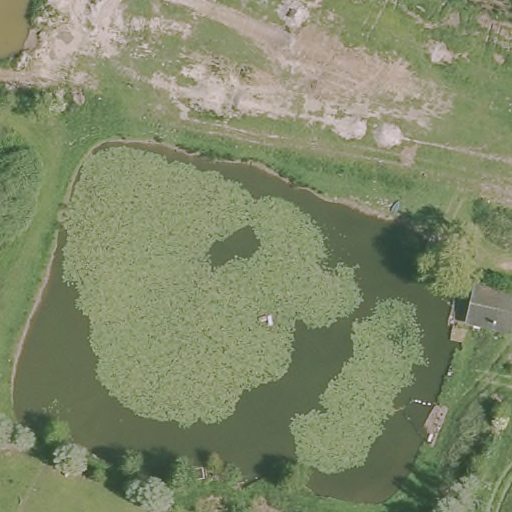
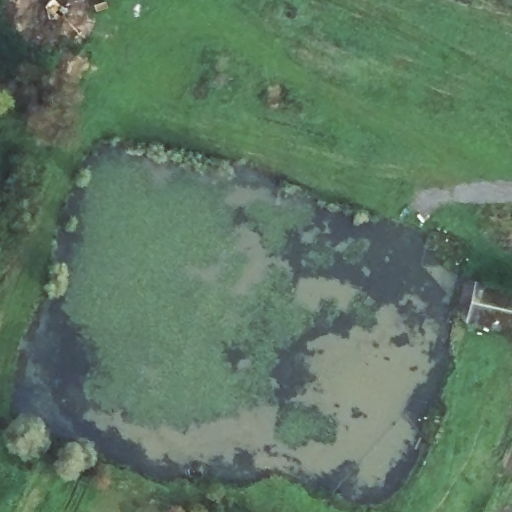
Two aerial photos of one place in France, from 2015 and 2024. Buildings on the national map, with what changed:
unchanged [(477,284),(512,292),(512,297),(501,332),(467,323),(477,284)]

